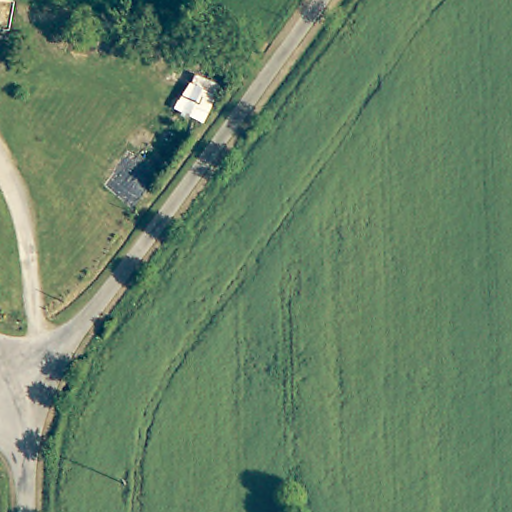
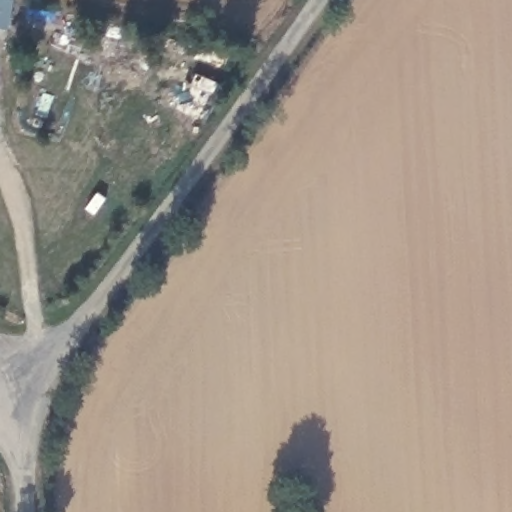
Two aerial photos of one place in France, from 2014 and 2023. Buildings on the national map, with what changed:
new [(9,30),(0,29),(0,0),(14,0),(9,30)]

